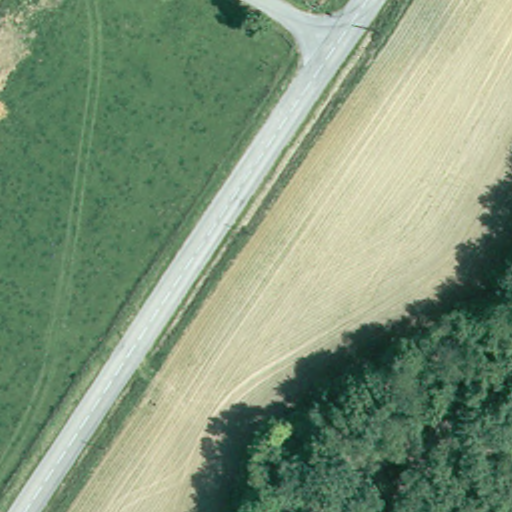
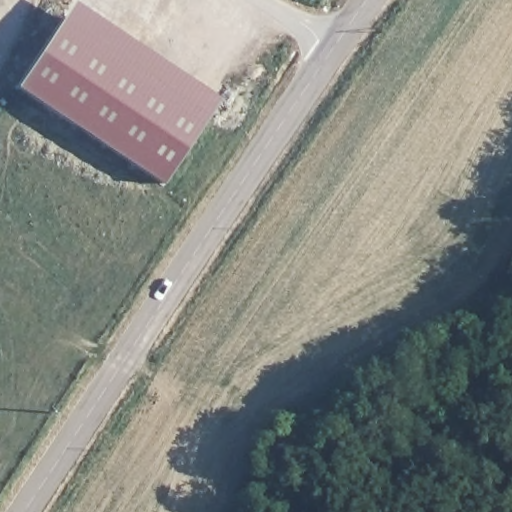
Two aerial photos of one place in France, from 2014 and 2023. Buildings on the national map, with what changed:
new [(222,99),(161,187),(16,89),(73,2),(222,99)]

